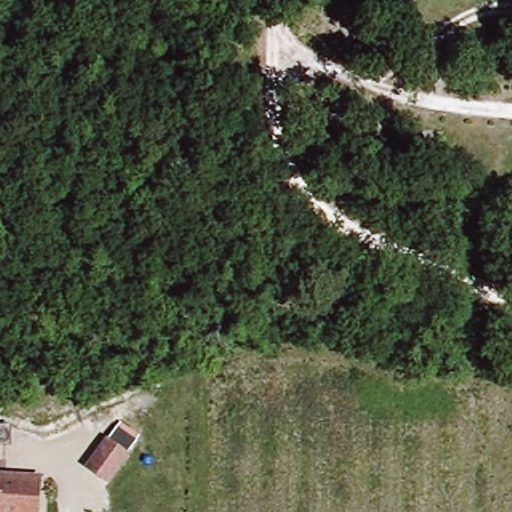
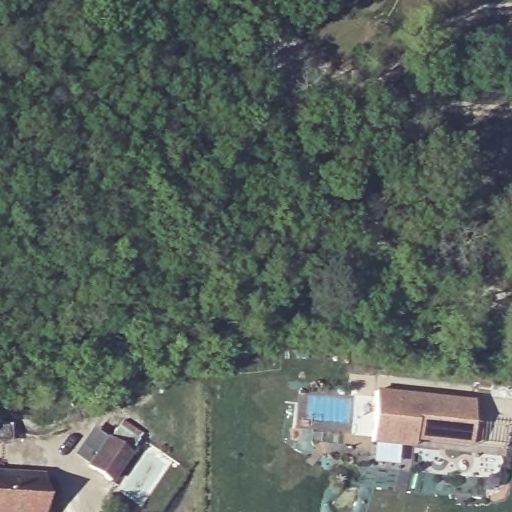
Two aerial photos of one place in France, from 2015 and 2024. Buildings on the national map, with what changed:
new [(474,401),(469,447),(412,442),(411,450),(369,445),(373,390),(474,401)]
unchanged [(0,448),(0,433),(11,433),(11,444),(11,449),(1,448),(0,448)]
unchanged [(107,440),(127,455),(107,483),(88,470),(107,440)]
unchanged [(0,512),(0,483),(33,484),(32,512),(0,512)]

